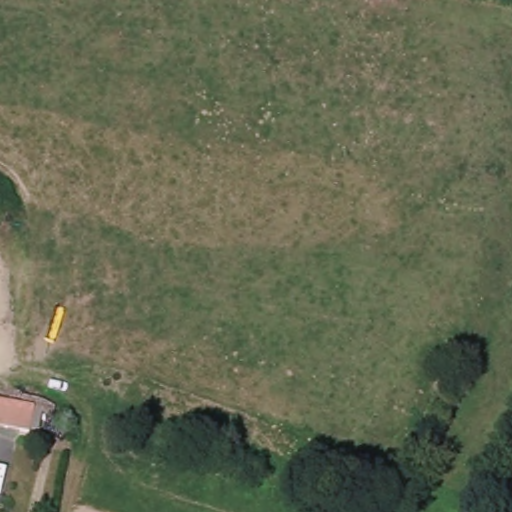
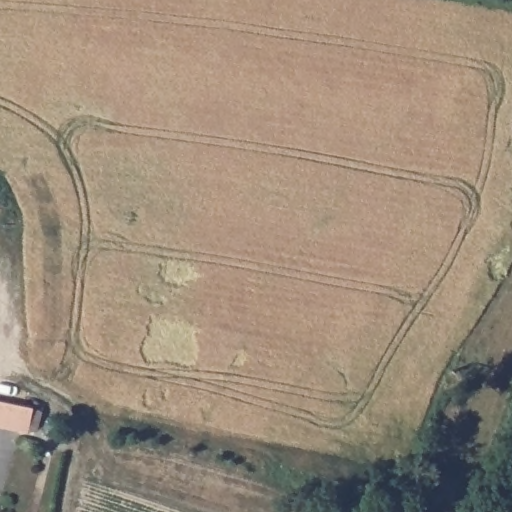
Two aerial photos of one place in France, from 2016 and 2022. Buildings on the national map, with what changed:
unchanged [(30,436),(7,430),(0,429),(0,403),(12,406),(36,412),(30,436)]

